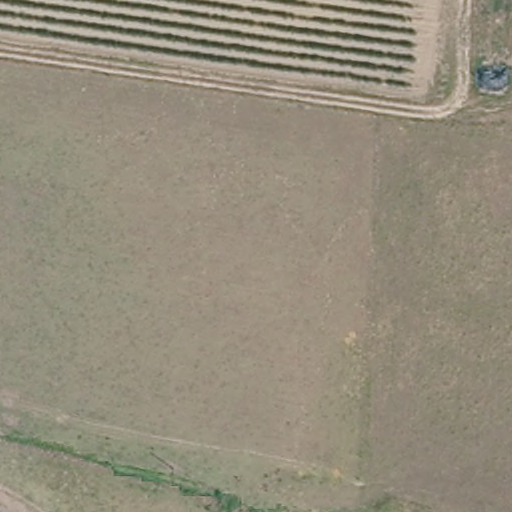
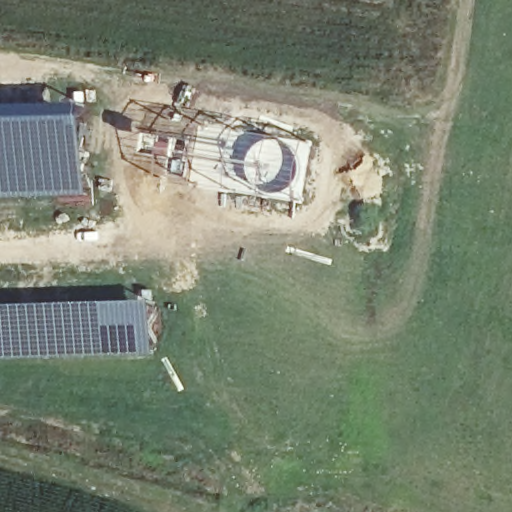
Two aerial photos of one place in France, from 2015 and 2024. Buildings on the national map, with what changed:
new [(16,111),(16,107),(84,105),(84,112),(87,167),(92,199),(81,200),(0,199),(0,112),(16,111)]
new [(153,302),(154,355),(0,359),(0,307),(153,302)]

